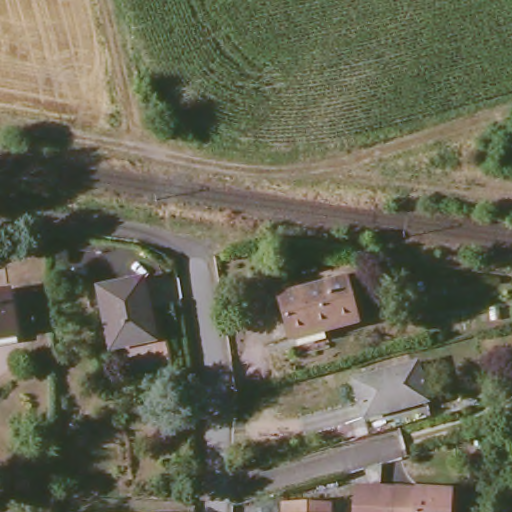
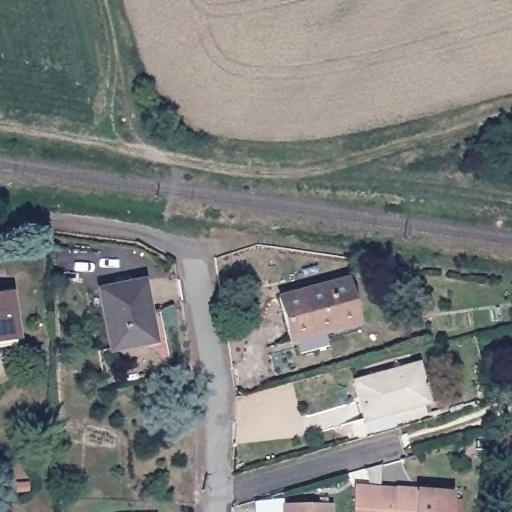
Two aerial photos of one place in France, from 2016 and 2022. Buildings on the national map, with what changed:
unchanged [(290,345),(280,302),(346,285),(357,327),(290,345)]
unchanged [(102,344),(102,286),(144,286),(145,343),(102,344)]
unchanged [(0,295),(6,295),(12,332),(0,334),(0,295)]
unchanged [(392,418),(355,428),(350,412),(362,409),(352,370),(413,352),(428,407),(392,418)]
unchanged [(352,488),(375,489),(390,489),(445,490),(445,512),(347,512),(347,488),(352,488)]
unchanged [(322,502),(323,512),(276,512),(276,507),(322,502)]

